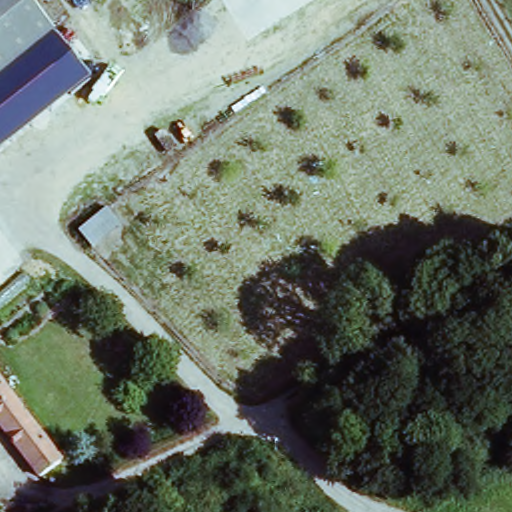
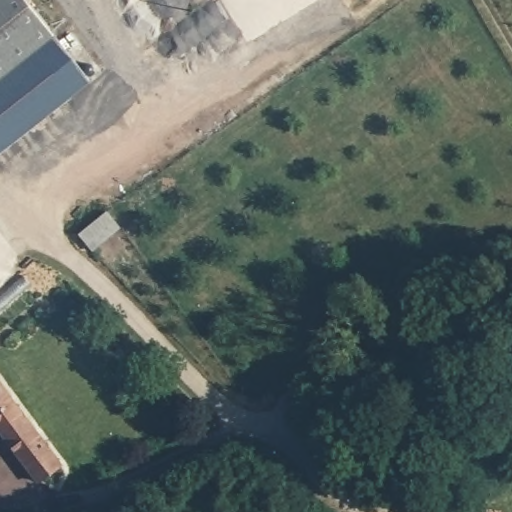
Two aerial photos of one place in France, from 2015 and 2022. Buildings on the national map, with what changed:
unchanged [(29,50),(64,101),(28,125),(0,144),(0,0),(28,0),(50,35),(29,50)]
unchanged [(50,35),(85,86),(64,101),(29,50),(50,35)]
unchanged [(118,236),(91,258),(79,245),(105,225),(118,236)]
unchanged [(0,375),(64,454),(43,471),(0,416),(0,375)]

